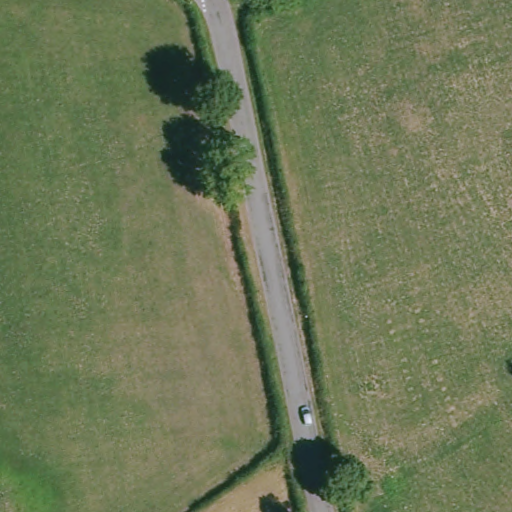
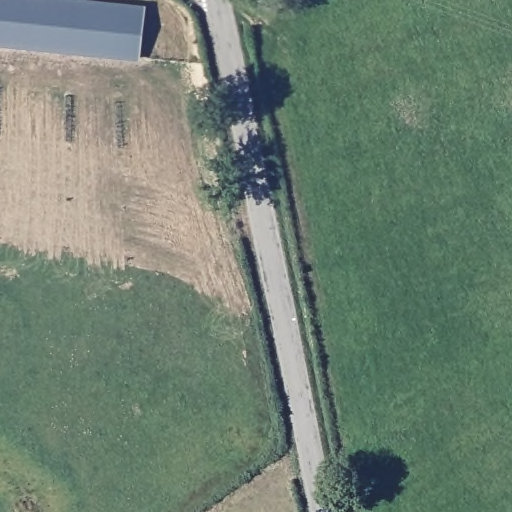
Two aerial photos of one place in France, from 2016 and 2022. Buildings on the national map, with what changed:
new [(0,43),(0,0),(64,0),(145,9),(142,58),(0,43)]
unchanged [(262,13),(259,0),(306,0),(262,13)]

